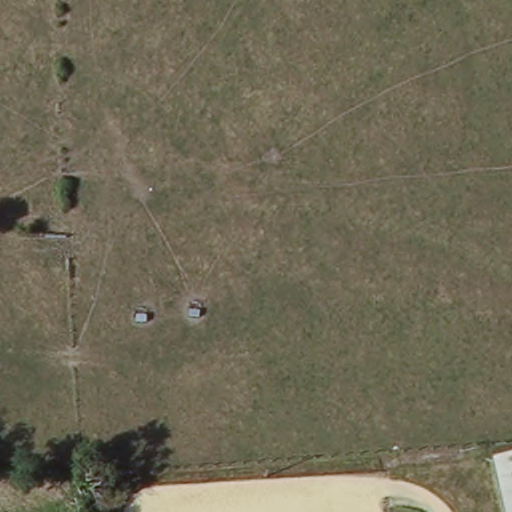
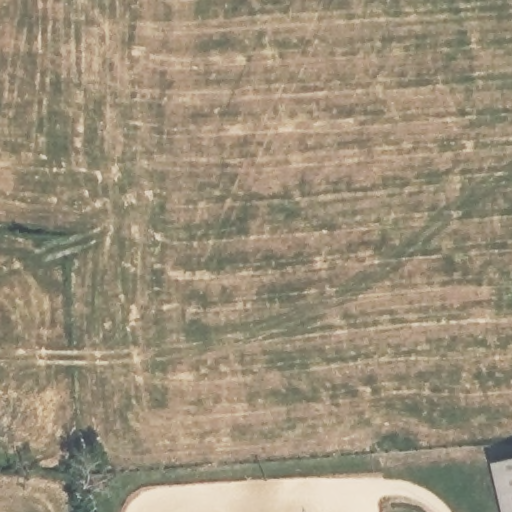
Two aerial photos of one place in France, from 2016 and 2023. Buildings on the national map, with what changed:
unchanged [(512,457),(512,512),(500,512),(488,463),(512,457)]

